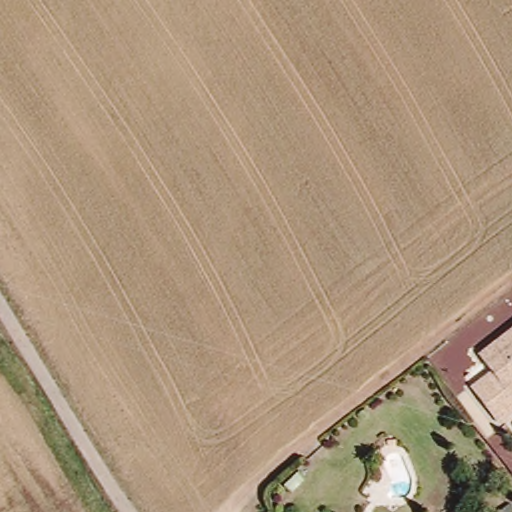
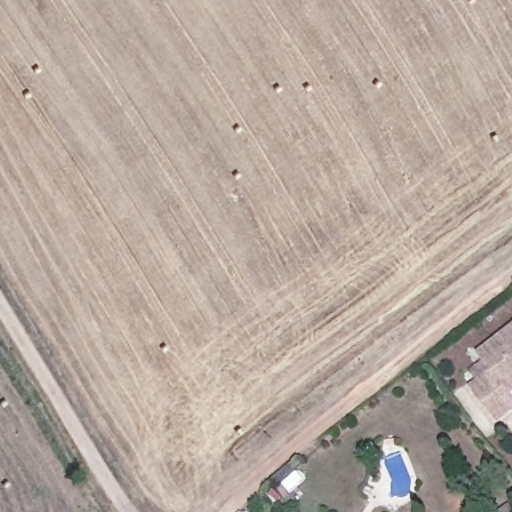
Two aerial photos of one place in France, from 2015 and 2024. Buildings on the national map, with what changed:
unchanged [(512,395),(512,409),(499,419),(472,386),(490,370),(477,353),(512,323),(512,393),(511,393),(512,395)]

